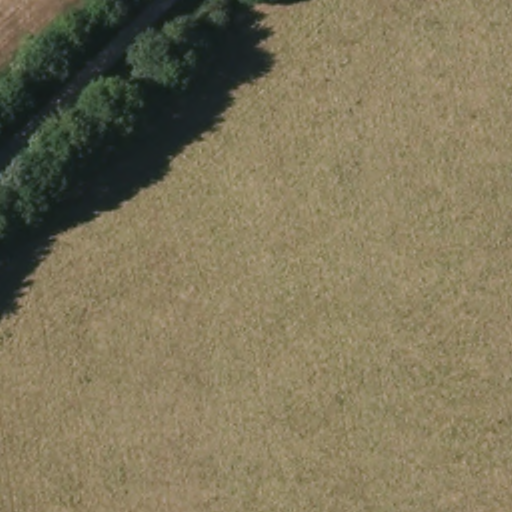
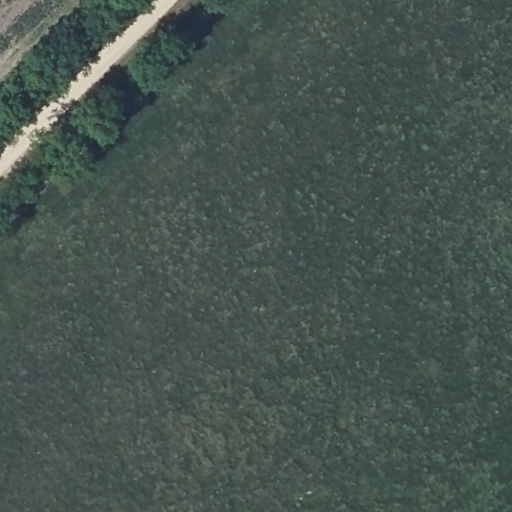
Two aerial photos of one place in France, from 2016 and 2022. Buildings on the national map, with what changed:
[]

